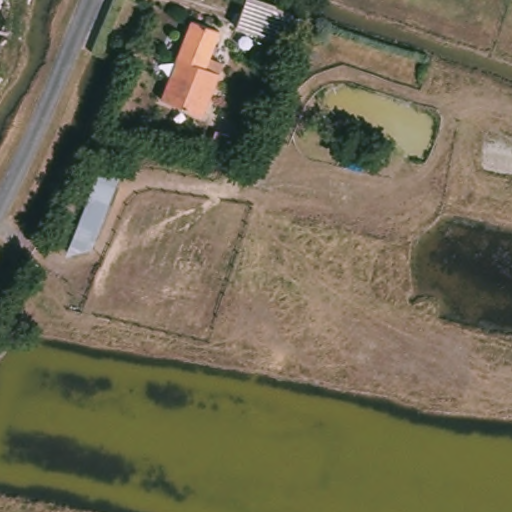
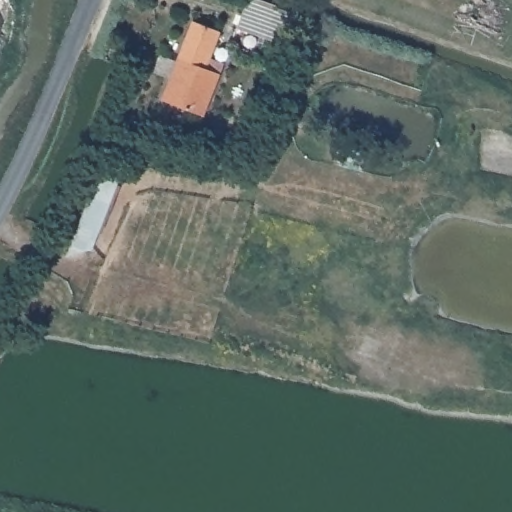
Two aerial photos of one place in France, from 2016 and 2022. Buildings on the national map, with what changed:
unchanged [(283,12),(272,47),(242,36),(254,2),(283,12)]
unchanged [(195,22),(222,32),(211,69),(225,74),(212,107),(210,117),(165,102),(167,95),(195,22)]
unchanged [(240,146),(233,167),(221,165),(222,162),(227,142),(240,146)]

